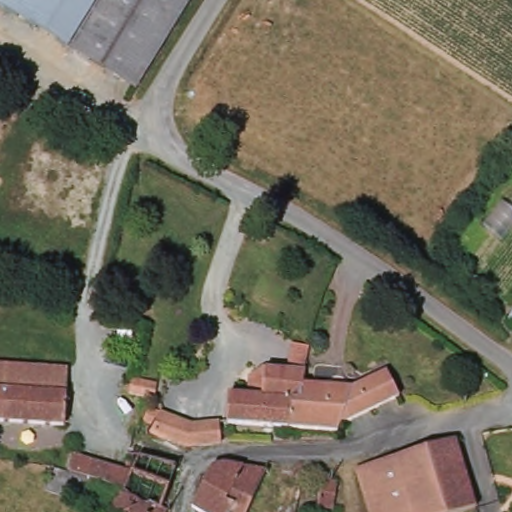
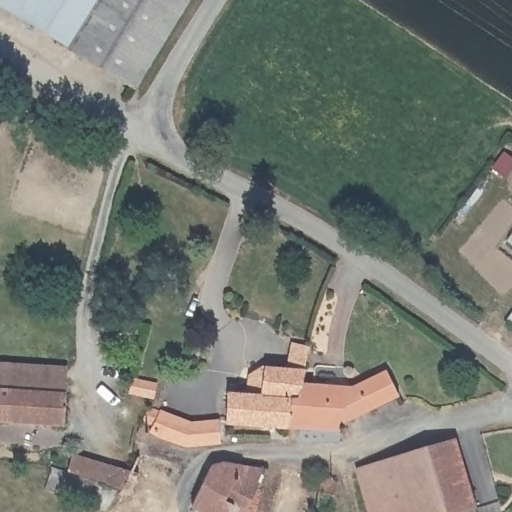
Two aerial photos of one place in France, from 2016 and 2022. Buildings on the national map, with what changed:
unchanged [(0,0),(101,0),(70,50),(0,6),(0,0)]
unchanged [(70,50),(101,0),(197,0),(139,93),(70,50)]
unchanged [(512,302),(512,322),(501,315),(512,302)]
unchanged [(302,389),(300,396),(293,395),(291,425),(229,420),(232,390),(248,392),(251,371),(258,372),(260,362),(268,363),(290,365),(296,346),(298,341),(315,345),(313,351),(311,356),(305,381),(302,389)]
unchanged [(66,428),(0,424),(0,365),(70,371),(66,428)]
unchanged [(387,370),(401,395),(345,424),(343,420),(335,398),(353,387),(387,370)]
unchanged [(149,377),(150,372),(171,376),(166,395),(133,388),(135,374),(149,377)]
unchanged [(291,425),(293,395),(300,396),(302,389),(305,381),(336,385),(335,392),(335,398),(343,420),(345,424),(347,430),(291,425)]
unchanged [(187,444),(154,431),(156,423),(150,420),(146,415),(147,409),(155,408),(191,421),(220,420),(221,441),(187,444)]
unchanged [(487,505),(462,511),(444,444),(468,437),(487,505)]
unchanged [(444,444),(462,511),(458,512),(431,512),(415,453),(444,444)]
unchanged [(90,455),(91,447),(121,454),(116,477),(85,471),(69,467),(73,450),(90,455)]
unchanged [(431,512),(357,512),(345,472),(415,453),(431,512)]
unchanged [(142,457),(179,468),(164,510),(154,506),(140,500),(126,493),(142,457)]
unchanged [(195,509),(215,469),(225,465),(245,469),(267,473),(248,511),(247,512),(199,512),(195,509)]
unchanged [(341,473),(337,501),(321,499),(325,470),(341,473)]
unchanged [(55,471),(74,476),(109,486),(113,487),(115,488),(126,493),(140,500),(154,506),(164,510),(168,512),(99,512),(84,507),(47,494),(55,471)]

